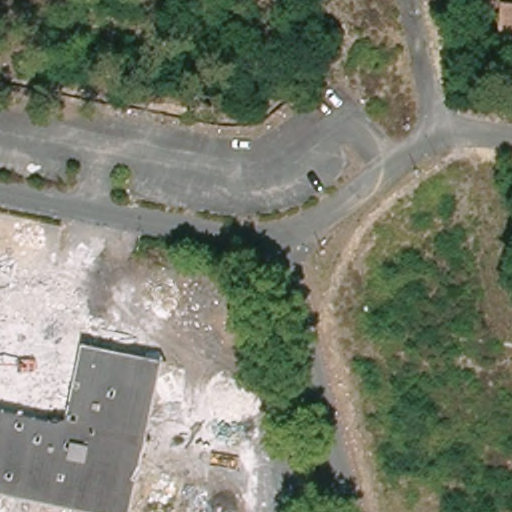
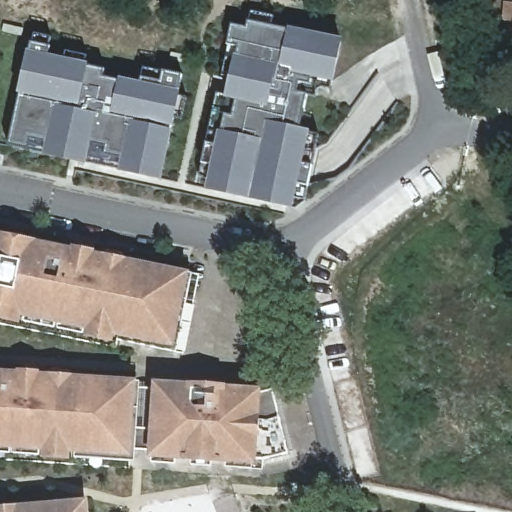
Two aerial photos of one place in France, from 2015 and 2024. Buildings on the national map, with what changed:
unchanged [(505,3),(512,4),(512,50),(500,48),(505,3)]
new [(204,164),(208,144),(217,93),(226,94),(229,76),(224,75),(230,45),(233,26),(247,29),(248,21),(249,13),(273,17),(272,26),(288,29),(342,39),(333,81),(331,89),(318,87),(315,98),(307,96),(300,127),(311,130),(316,132),(312,165),(307,186),(303,197),(296,196),(293,208),(206,190),(209,178),(199,176),(204,164)]
new [(49,54),(65,57),(66,51),(89,56),(89,63),(88,67),(105,70),(104,78),(120,81),(121,77),(142,81),(143,76),(145,67),(163,71),(183,76),(181,90),(180,94),(187,97),(181,120),(175,119),(174,130),(163,179),(118,169),(86,161),(44,153),(29,148),(11,144),(22,94),(19,93),(28,48),(29,41),(49,45),(49,54)]
new [(183,352),(176,351),(114,339),(114,342),(86,338),(86,333),(21,320),(20,323),(0,320),(0,233),(189,271),(192,272),(200,273),(183,352)]
demolished [(155,360),(124,512),(122,512),(0,487),(0,327),(155,360)]
new [(288,452),(265,459),(258,458),(257,463),(151,457),(151,447),(137,447),(135,459),(70,456),(70,460),(42,458),(42,453),(0,451),(0,369),(137,378),(140,379),(140,387),(153,387),(153,382),(261,387),(260,392),(273,389),(288,452)]
new [(89,498),(90,512),(0,512),(0,506),(89,498)]

